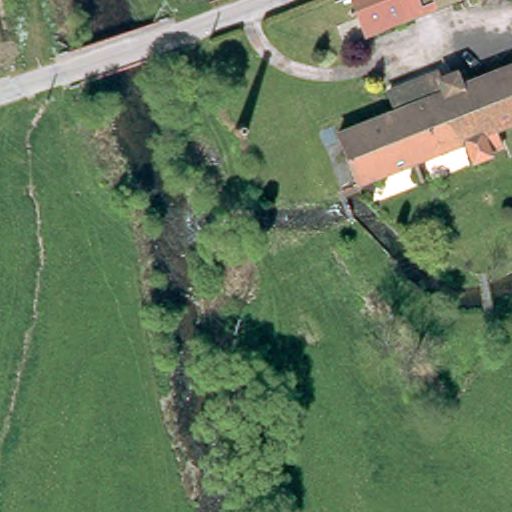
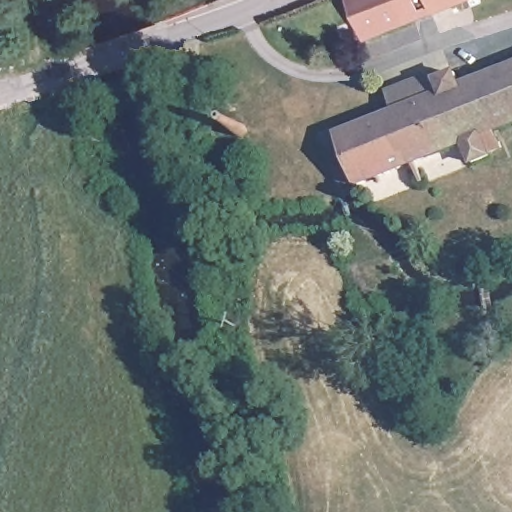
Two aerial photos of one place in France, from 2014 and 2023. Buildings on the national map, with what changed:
unchanged [(352,0),(460,0),(366,36),(352,0)]
unchanged [(420,105),(415,89),(427,84),(423,74),(437,68),(442,81),(460,74),(465,89),(512,71),(512,130),(499,135),(505,150),(492,155),(494,161),(479,167),(470,146),(421,164),(427,185),(425,186),(417,165),(362,186),(355,168),(342,135),(420,105)]

